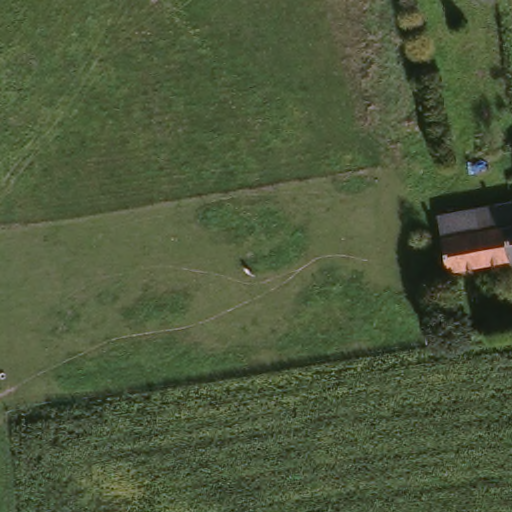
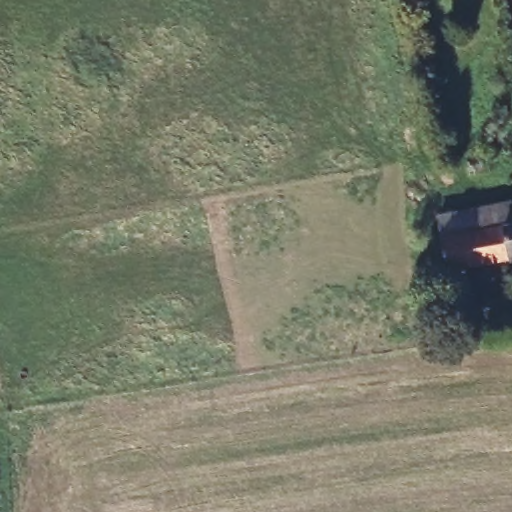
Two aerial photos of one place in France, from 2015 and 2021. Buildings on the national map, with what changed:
unchanged [(439,239),(434,220),(470,213),(508,206),(512,224),(512,262),(481,267),(441,275),(435,240),(439,239)]

